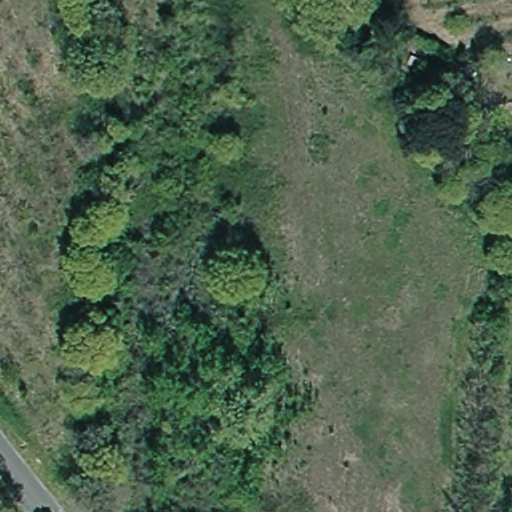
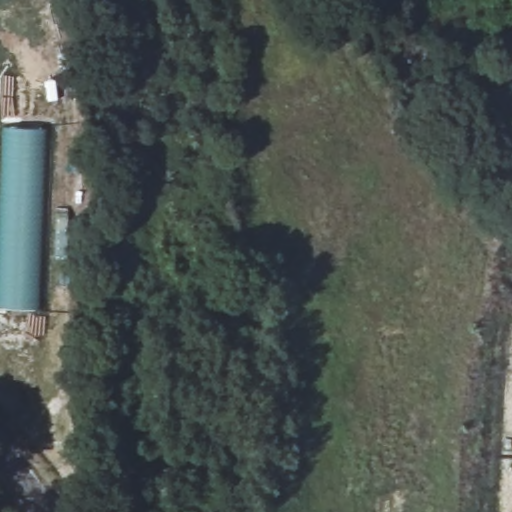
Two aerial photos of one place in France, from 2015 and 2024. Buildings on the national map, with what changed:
new [(0,309),(0,138),(0,127),(46,129),(38,311),(0,309)]
unchanged [(146,204),(128,210),(123,194),(142,189),(146,204)]
demolished [(24,511),(25,512),(15,512),(24,511)]

